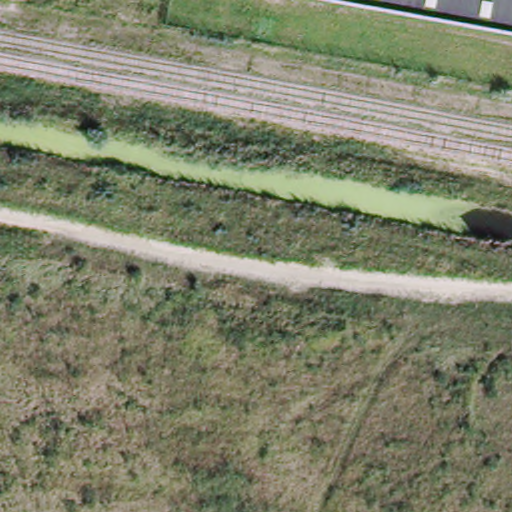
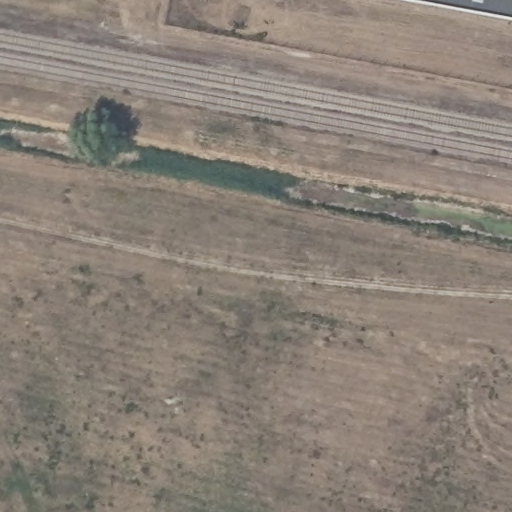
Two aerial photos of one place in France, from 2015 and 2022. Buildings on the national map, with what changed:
unchanged [(405,0),(512,0),(512,20),(405,0)]

